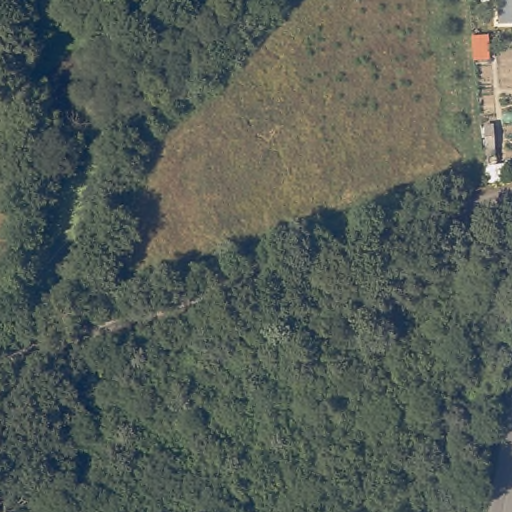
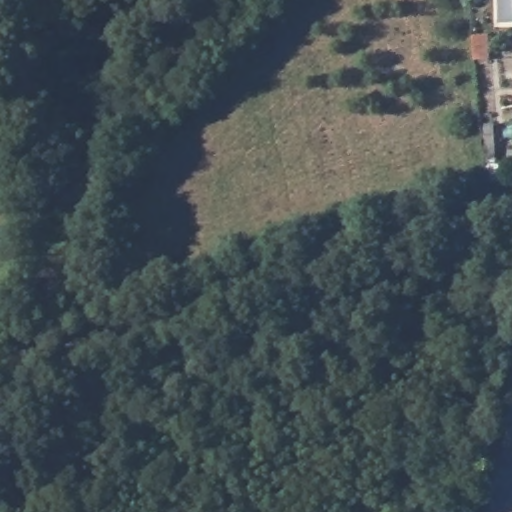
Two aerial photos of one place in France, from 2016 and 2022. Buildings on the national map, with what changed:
unchanged [(499,23),(498,0),(512,0),(512,23),(499,23)]

